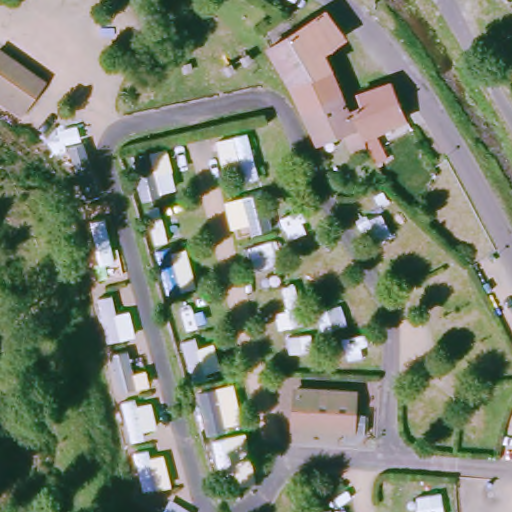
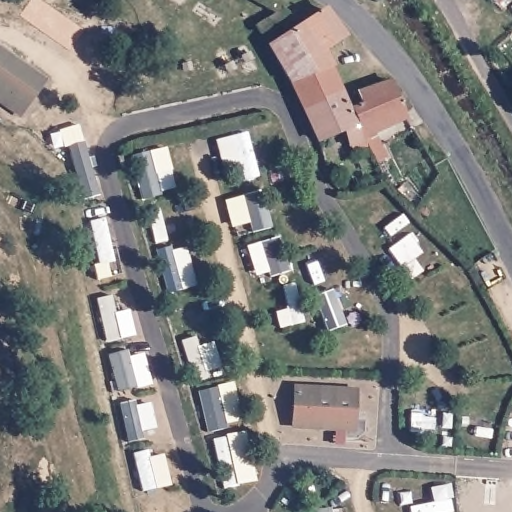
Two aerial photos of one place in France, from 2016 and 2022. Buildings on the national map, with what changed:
unchanged [(305,23),(318,13),(338,40),(319,53),(326,71),(286,85),(268,49),(305,23)]
unchanged [(0,106),(0,53),(39,81),(15,117),(0,106)]
unchanged [(299,112),(286,85),(326,71),(337,98),(299,112)]
unchanged [(358,106),(355,96),(387,84),(398,119),(369,134),(374,145),(365,149),(361,139),(348,111),(358,106)]
unchanged [(344,112),(348,111),(361,139),(344,147),(336,132),(313,142),(299,112),(337,98),(344,112)]
unchanged [(360,432),(352,440),(337,439),(337,427),(288,423),(290,393),(290,387),(309,389),(342,391),(350,392),(350,399),(349,419),(361,420),(360,424),(360,432)]

